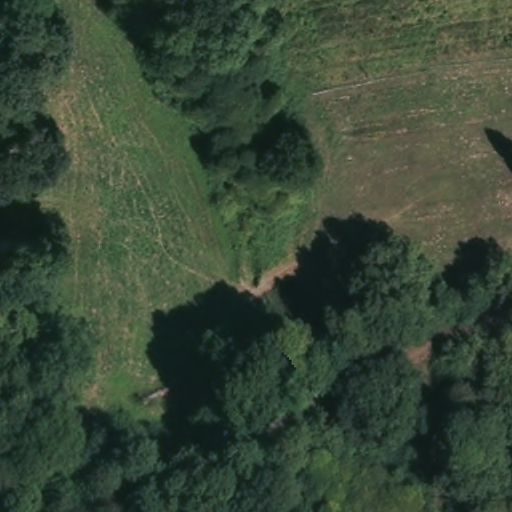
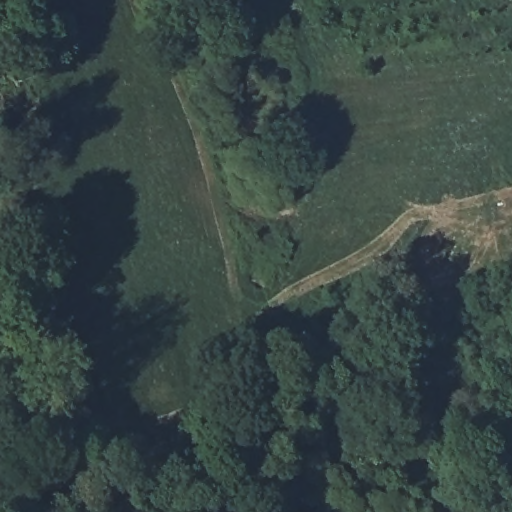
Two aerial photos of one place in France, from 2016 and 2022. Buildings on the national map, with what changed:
[]

